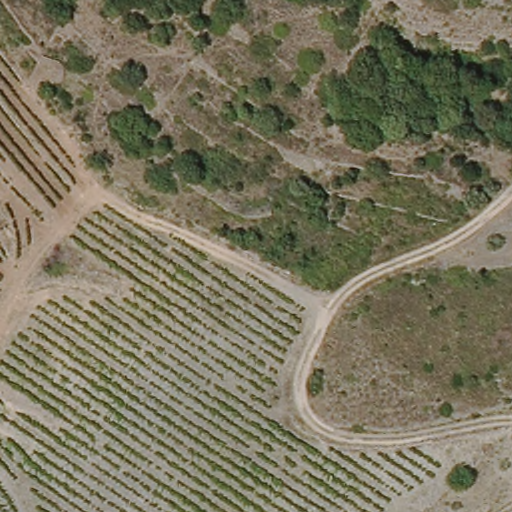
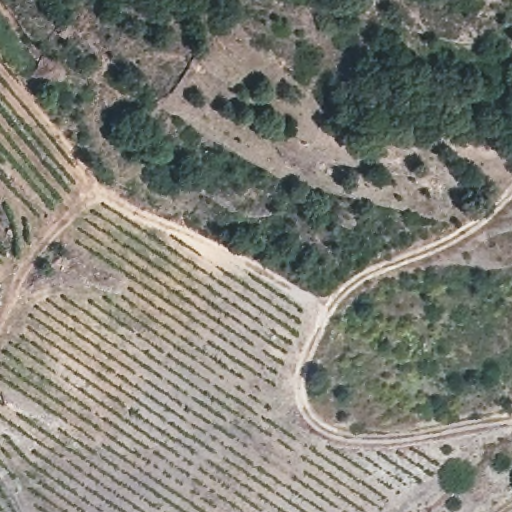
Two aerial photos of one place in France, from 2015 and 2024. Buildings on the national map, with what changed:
[]

